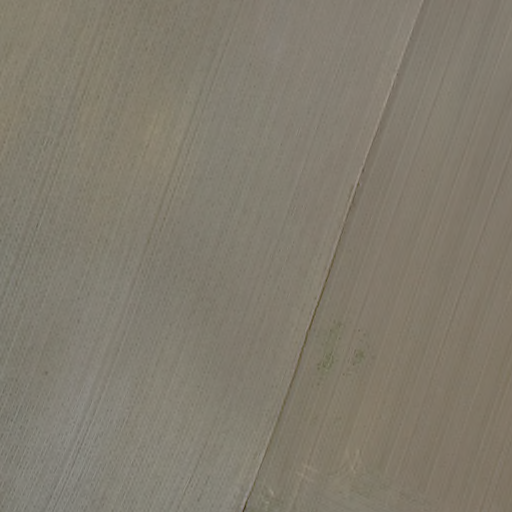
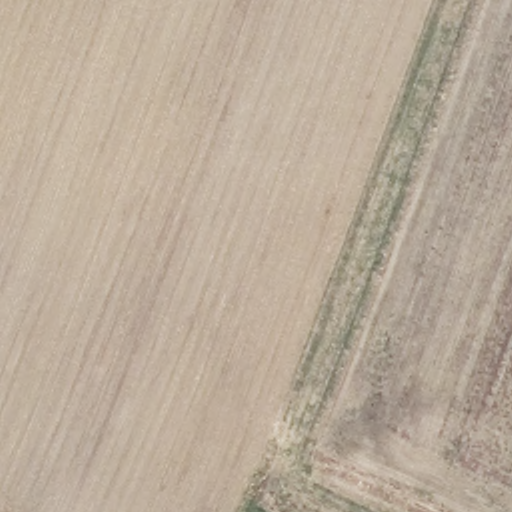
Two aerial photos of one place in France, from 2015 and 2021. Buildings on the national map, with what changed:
[]

